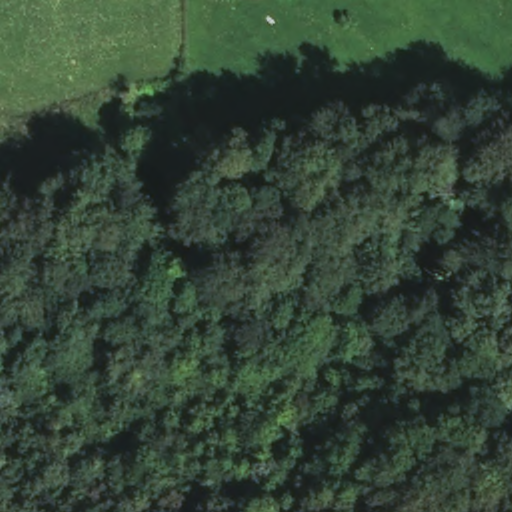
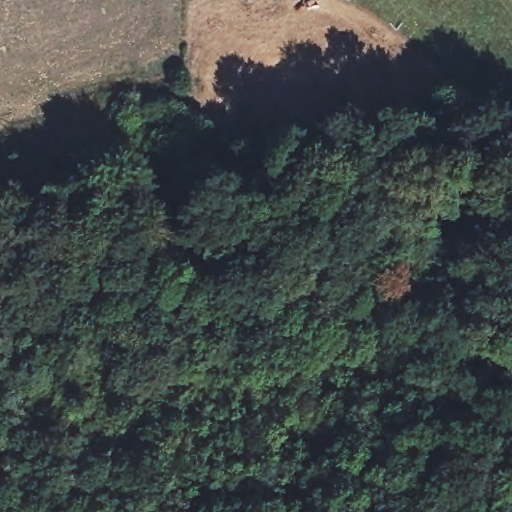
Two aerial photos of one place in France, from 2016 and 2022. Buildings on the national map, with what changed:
unchanged [(235,1),(236,0),(265,0),(263,5),(235,1)]

